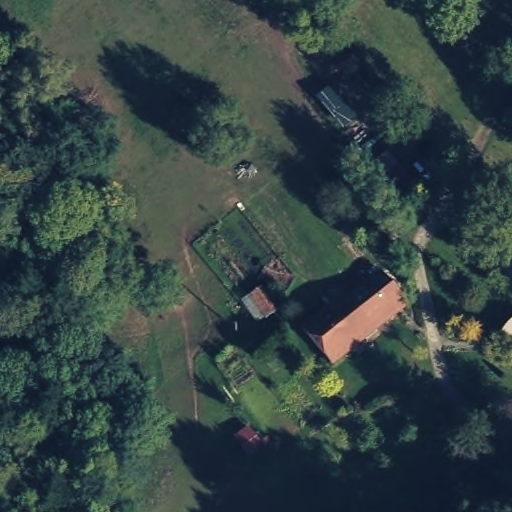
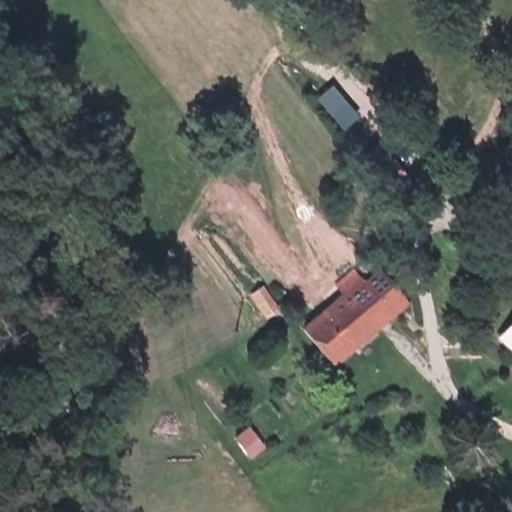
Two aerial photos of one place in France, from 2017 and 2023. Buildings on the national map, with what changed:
unchanged [(400,308),(338,355),(310,317),(371,270),(400,308)]

